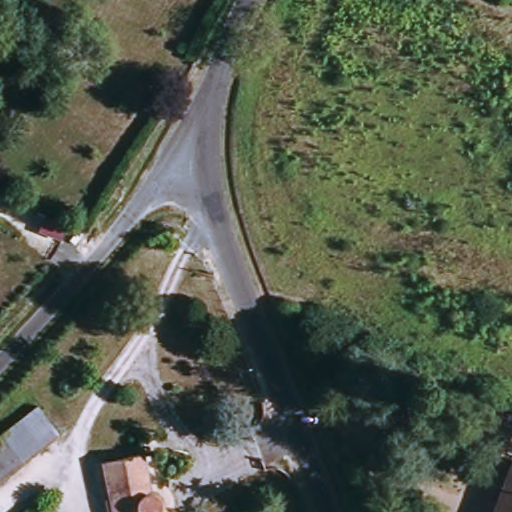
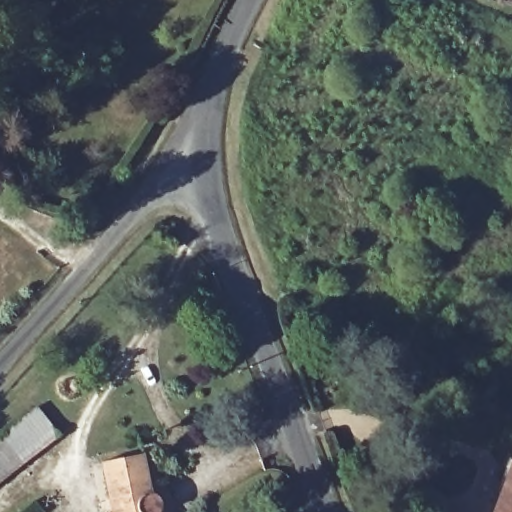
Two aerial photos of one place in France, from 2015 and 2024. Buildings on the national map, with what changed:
unchanged [(58,244),(65,224),(88,233),(75,253),(58,244)]
unchanged [(30,455),(0,478),(0,432),(7,427),(30,455)]
unchanged [(143,454),(150,491),(158,496),(162,504),(161,512),(113,512),(101,463),(143,454)]
unchanged [(512,462),(512,512),(493,512),(512,462)]

